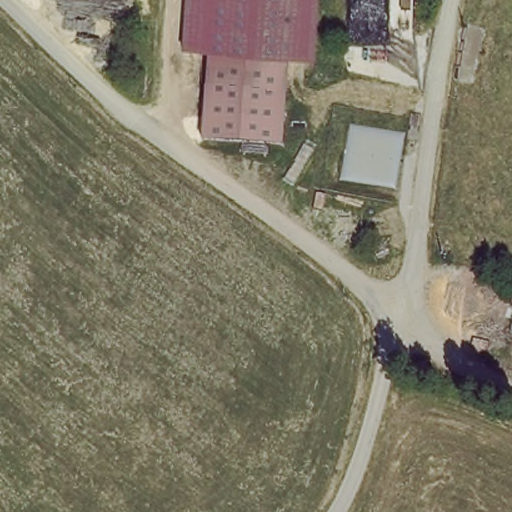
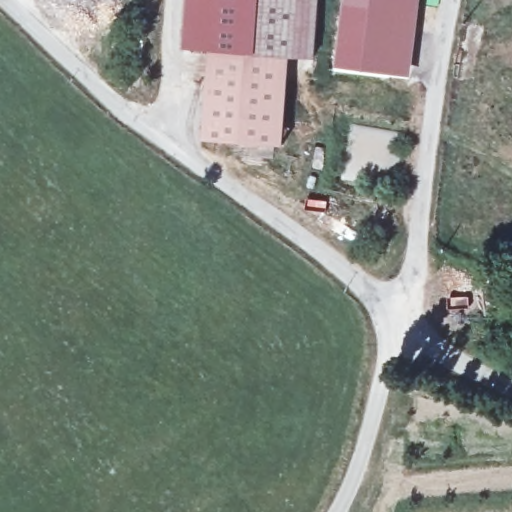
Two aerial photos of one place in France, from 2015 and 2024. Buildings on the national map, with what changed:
unchanged [(181,49),(184,0),(318,0),(314,61),(293,59),(285,147),(204,141),(213,52),(181,49)]
new [(334,69),(342,0),(420,0),(410,77),(334,69)]

